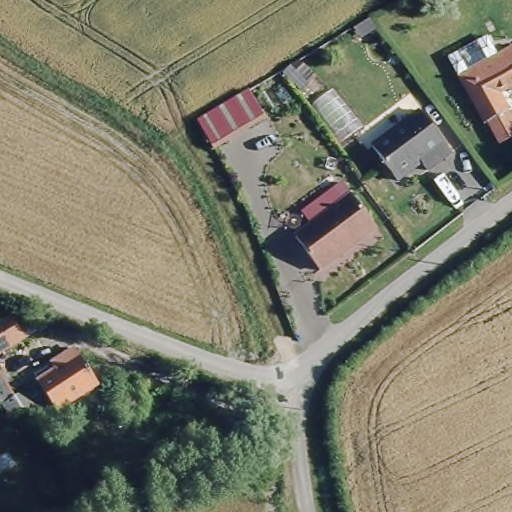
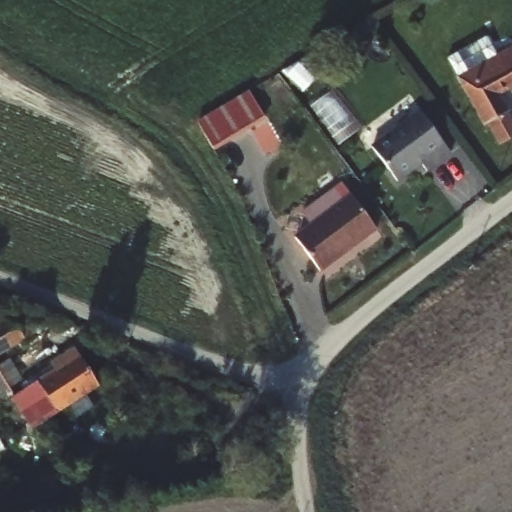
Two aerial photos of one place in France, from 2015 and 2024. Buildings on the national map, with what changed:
unchanged [(451,69),(461,63),(467,72),(502,53),(508,61),(512,59),(512,87),(492,98),(503,116),(500,119),(509,132),(505,135),(509,142),(502,147),(498,143),(492,145),(451,69)]
unchanged [(253,87),(270,116),(218,147),(200,117),(253,87)]
unchanged [(451,151),(426,167),(420,158),(397,172),(372,136),(422,107),(451,151)]
unchanged [(320,262),(297,229),(354,187),(377,220),(320,262)]
unchanged [(22,312),(34,329),(0,349),(0,306),(10,320),(22,312)]
unchanged [(29,385),(23,376),(67,347),(74,356),(94,385),(85,391),(48,416),(39,404),(13,421),(0,401),(0,364),(18,391),(29,385)]

